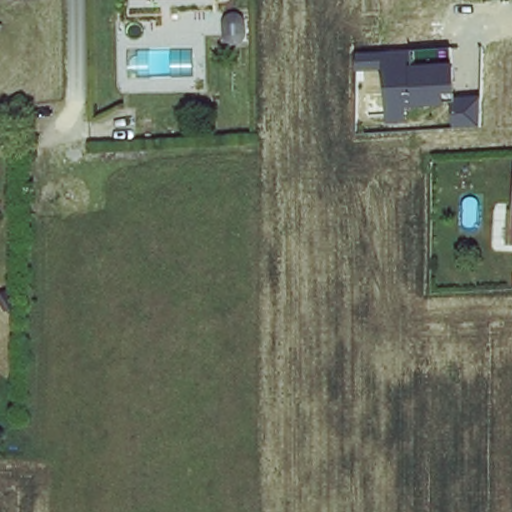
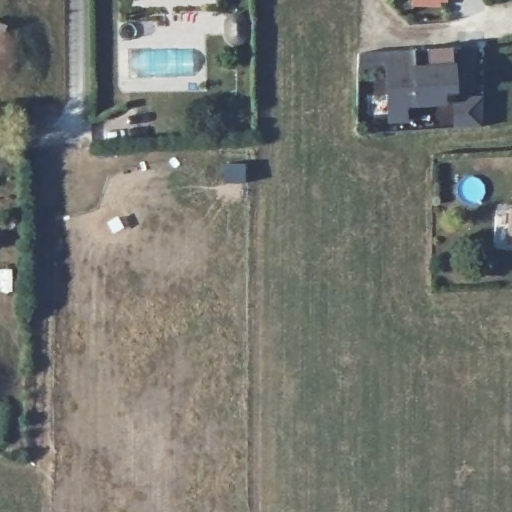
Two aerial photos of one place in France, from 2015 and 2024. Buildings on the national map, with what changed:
new [(447,0),(447,1),(440,1),(440,7),(410,7),(412,0),(447,0)]
unchanged [(452,48),(456,96),(480,95),(481,126),(454,129),(452,101),(407,105),(408,121),(389,124),(384,70),(358,71),(358,53),(452,48)]

